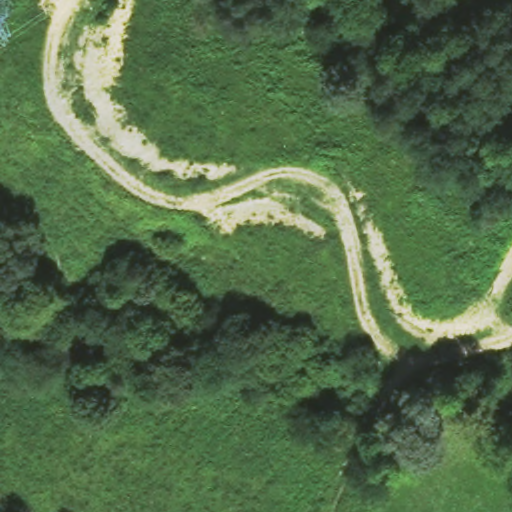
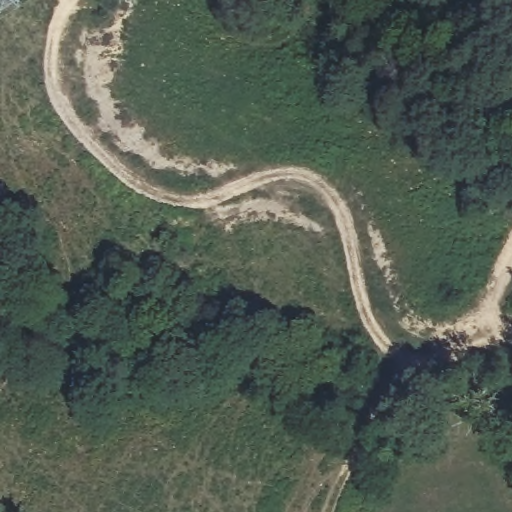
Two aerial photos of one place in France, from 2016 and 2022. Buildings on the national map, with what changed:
[]

